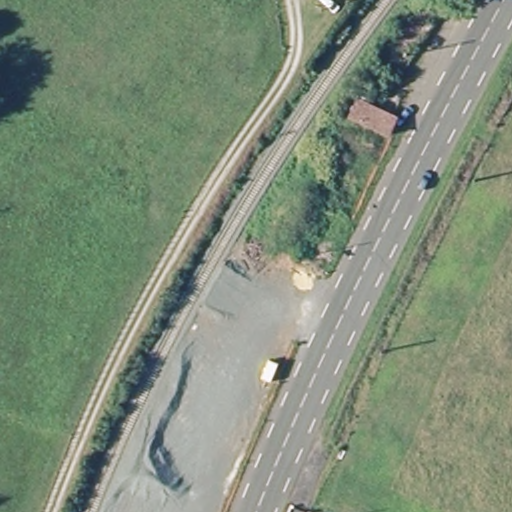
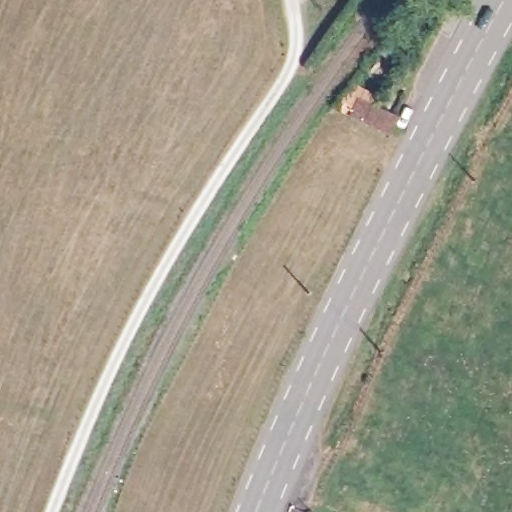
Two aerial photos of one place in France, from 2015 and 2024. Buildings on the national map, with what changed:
unchanged [(360,130),(365,116),(396,130),(388,143),(360,130)]

